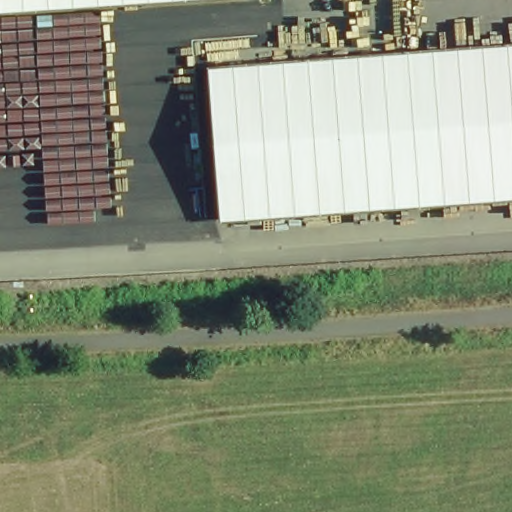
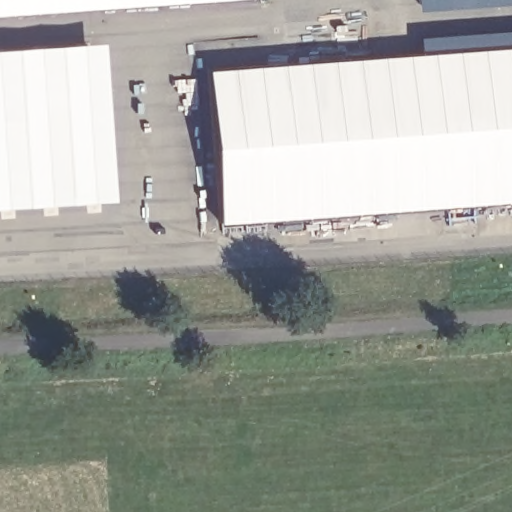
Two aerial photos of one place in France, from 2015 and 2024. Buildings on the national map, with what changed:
unchanged [(0,13),(0,0),(181,0),(0,13)]
new [(114,202),(0,210),(0,50),(103,42),(114,202)]
unchanged [(222,225),(208,51),(272,45),(273,62),(512,43),(512,201),(222,225)]

